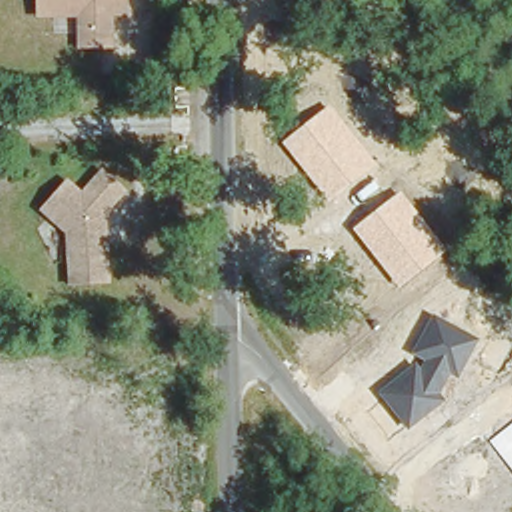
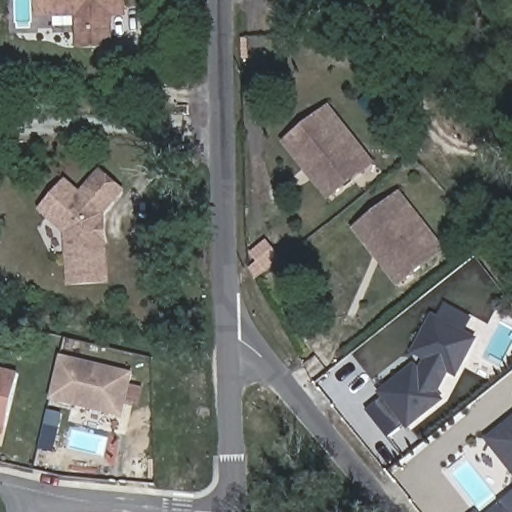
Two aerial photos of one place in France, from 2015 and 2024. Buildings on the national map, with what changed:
unchanged [(115,21),(115,51),(77,53),(77,19),(36,20),(36,0),(127,0),(127,20),(115,21)]
unchanged [(331,202),(282,141),(327,103),(377,163),(331,202)]
unchanged [(107,283),(69,286),(64,235),(37,213),(62,184),(77,196),(97,173),(120,192),(100,215),(107,283)]
unchanged [(400,288),(352,229),(401,192),(446,253),(400,288)]
unchanged [(459,378),(451,374),(439,395),(446,403),(409,428),(381,388),(414,363),(421,366),(425,361),(408,352),(427,311),(480,337),(459,378)]
new [(50,401),(60,356),(133,374),(122,418),(50,401)]
new [(0,428),(0,368),(19,373),(6,430),(0,428)]
unchanged [(512,423),(512,469),(491,441),(512,423)]
new [(501,503),(507,512),(489,512),(501,503)]

